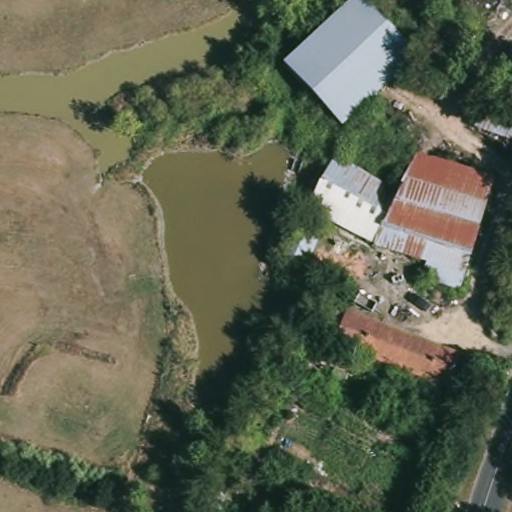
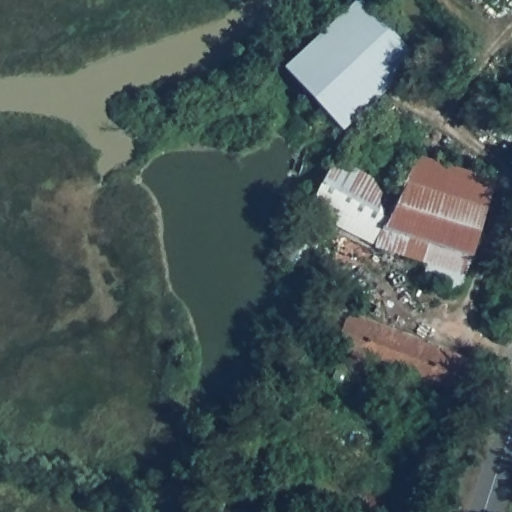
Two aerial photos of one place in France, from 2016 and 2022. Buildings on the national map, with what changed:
unchanged [(287,72),(362,0),(364,0),(423,64),(347,137),(287,72)]
unchanged [(512,119),(512,147),(477,136),(485,113),(512,119)]
unchanged [(335,158),(399,194),(417,155),(496,178),(472,271),(389,232),(401,207),(328,173),(335,158)]
unchanged [(389,232),(472,271),(464,291),(382,252),(379,260),(303,225),(328,173),(401,207),(389,232)]
unchanged [(305,239),(316,246),(320,239),(333,242),(315,276),(292,265),(305,239)]
unchanged [(333,312),(473,367),(460,399),(320,346),(333,312)]
unchanged [(283,348),(285,360),(269,357),(270,345),(283,348)]

